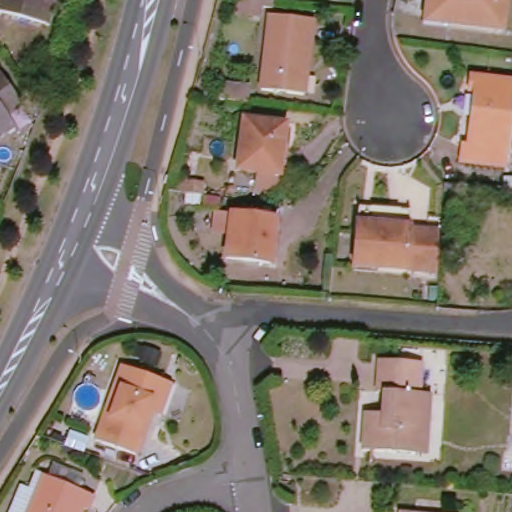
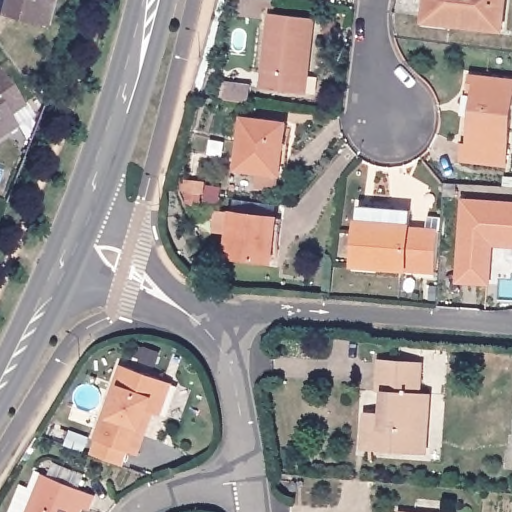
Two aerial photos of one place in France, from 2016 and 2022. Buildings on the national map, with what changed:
unchanged [(0,0),(52,0),(46,23),(0,12),(0,0)]
unchanged [(276,8),(265,6),(264,16),(240,13),(241,0),(277,0),(276,8)]
unchanged [(425,27),(427,16),(431,16),(433,2),(434,0),(509,0),(505,32),(452,25),(451,30),(425,27)]
unchanged [(265,88),(273,14),(316,19),(306,93),(265,88)]
unchanged [(25,103),(11,114),(18,124),(0,138),(0,67),(1,66),(25,103)]
unchanged [(459,153),(461,137),(471,138),(477,88),(472,87),(475,71),(512,75),(512,122),(507,159),(459,153)]
unchanged [(246,103),(233,101),(216,99),(219,83),(248,86),(246,103)]
unchanged [(282,175),(277,174),(235,170),(242,118),(285,123),(282,142),(287,143),(282,175)]
unchanged [(201,194),(199,193),(183,191),(185,180),(202,183),(201,194)]
new [(512,201),(512,247),(494,246),(490,285),(456,282),(462,197),(512,201)]
unchanged [(412,233),(440,236),(437,276),(357,270),(360,227),(361,215),(362,210),(375,211),(413,214),(412,233)]
unchanged [(222,257),(230,212),(275,218),(280,219),(276,246),(270,245),(267,263),(222,257)]
unchanged [(412,456),(361,451),(365,415),(382,417),(385,393),(376,392),(380,361),(420,365),(417,395),(429,397),(425,438),(424,456),(412,456)]
unchanged [(96,440),(125,367),(165,381),(174,384),(162,415),(154,413),(137,456),(96,440)]
unchanged [(33,492),(41,473),(46,476),(99,497),(93,512),(92,512),(87,510),(86,512),(12,512),(22,487),(33,492)]

